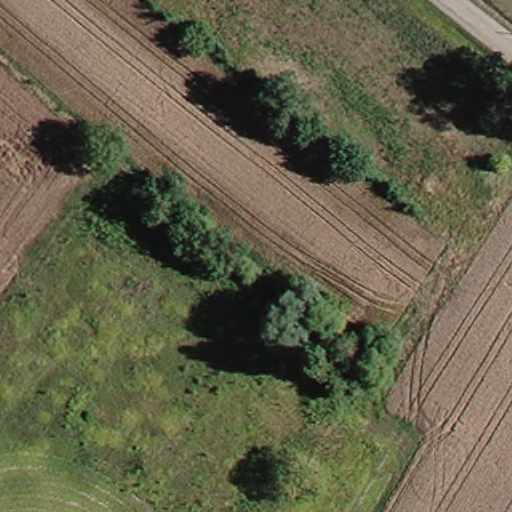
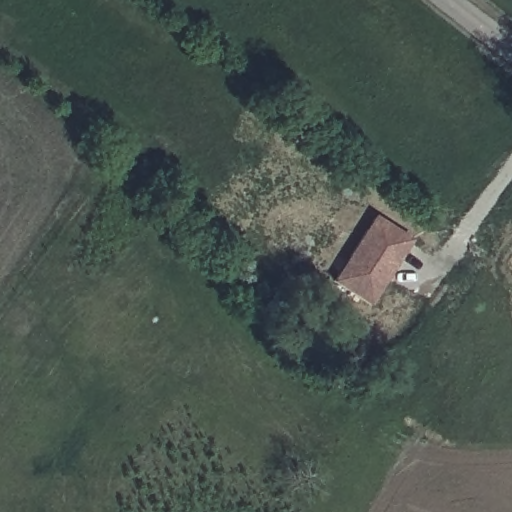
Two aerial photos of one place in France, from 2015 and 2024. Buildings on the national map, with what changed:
new [(370,306),(331,281),(374,215),(412,241),(370,306)]

